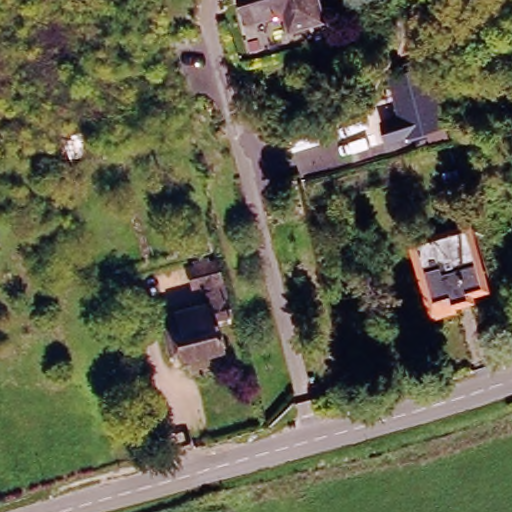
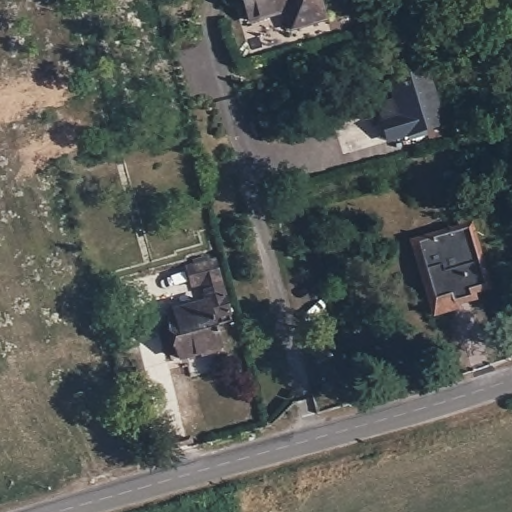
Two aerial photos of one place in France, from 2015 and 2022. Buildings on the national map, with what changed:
unchanged [(295,26),(290,9),(246,21),(239,0),(314,0),(320,19),(295,26)]
unchanged [(377,122),(397,117),(386,77),(425,67),(441,125),(402,136),(383,141),(377,122)]
unchanged [(430,315),(425,297),(411,242),(417,240),(466,227),(484,285),(469,290),(471,296),(451,301),(452,309),(430,315)]
unchanged [(230,326),(211,331),(217,354),(179,364),(177,357),(167,360),(158,332),(169,329),(166,318),(204,307),(198,287),(187,290),(182,272),(212,264),(230,326)]

